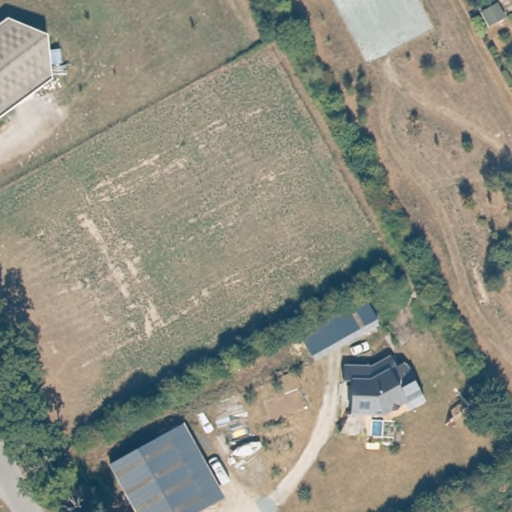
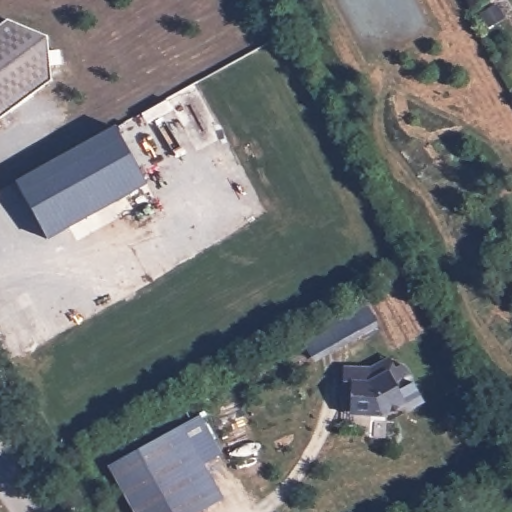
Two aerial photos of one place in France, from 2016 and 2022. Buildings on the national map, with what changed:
unchanged [(21,16),(62,33),(54,80),(0,110),(0,28),(21,16)]
new [(148,186),(49,241),(17,181),(116,127),(148,186)]
unchanged [(352,418),(354,389),(345,389),(346,373),(373,375),(392,364),(398,375),(405,371),(406,372),(408,374),(409,374),(409,375),(410,376),(411,377),(411,378),(412,378),(412,379),(412,380),(413,380),(413,381),(414,383),(414,384),(414,385),(415,386),(415,387),(415,388),(415,390),(416,391),(402,398),(408,410),(384,423),(352,422),(352,418)]
unchanged [(183,422),(224,496),(207,505),(166,431),(183,422)]
unchanged [(196,512),(139,512),(112,462),(166,431),(207,505),(196,512)]

